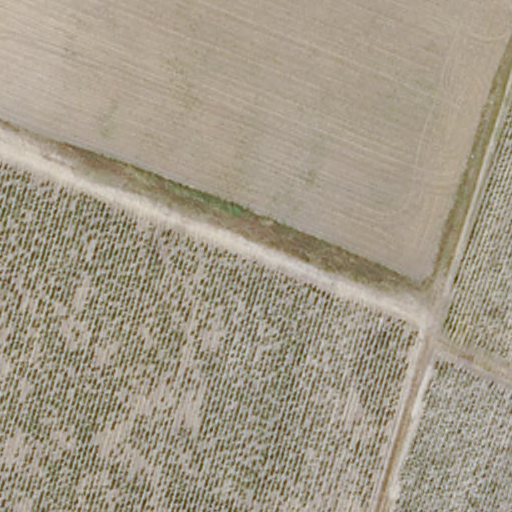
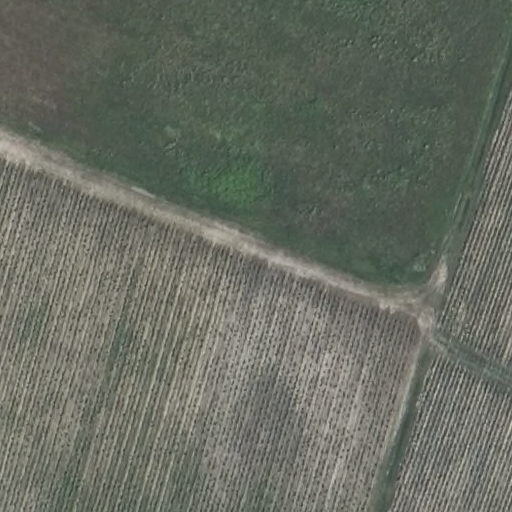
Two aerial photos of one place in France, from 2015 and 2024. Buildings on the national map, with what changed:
[]

